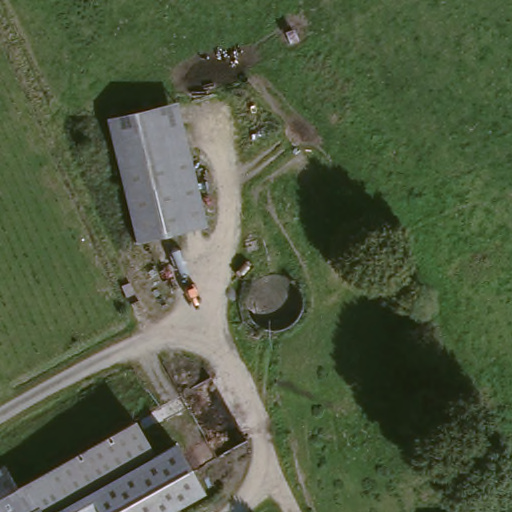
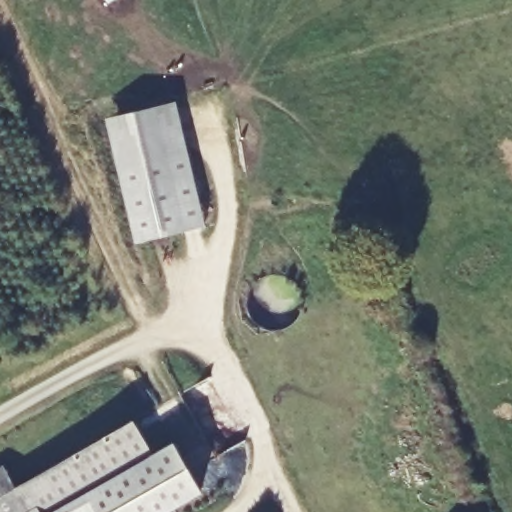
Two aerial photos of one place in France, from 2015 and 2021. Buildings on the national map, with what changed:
unchanged [(176,99),(209,220),(142,238),(109,117),(176,99)]
unchanged [(19,482),(137,417),(156,452),(178,441),(204,488),(161,512),(6,512),(0,500),(0,464),(7,460),(19,482)]

